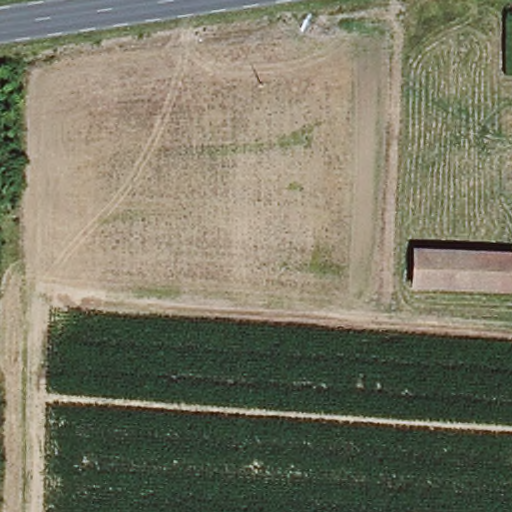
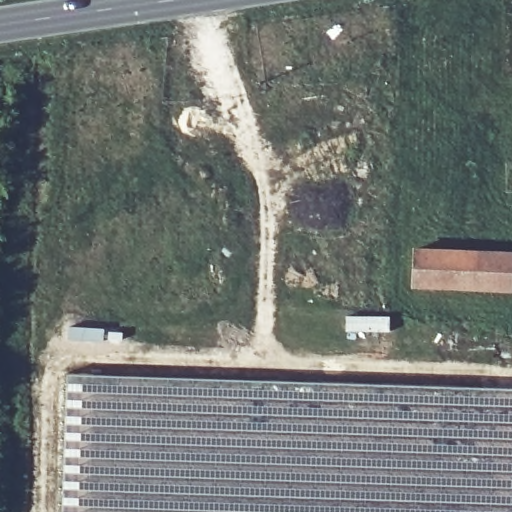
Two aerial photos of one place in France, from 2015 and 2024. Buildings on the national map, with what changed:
unchanged [(512,251),(512,292),(410,290),(411,249),(512,251)]
new [(512,389),(512,512),(62,512),(66,374),(512,389)]

